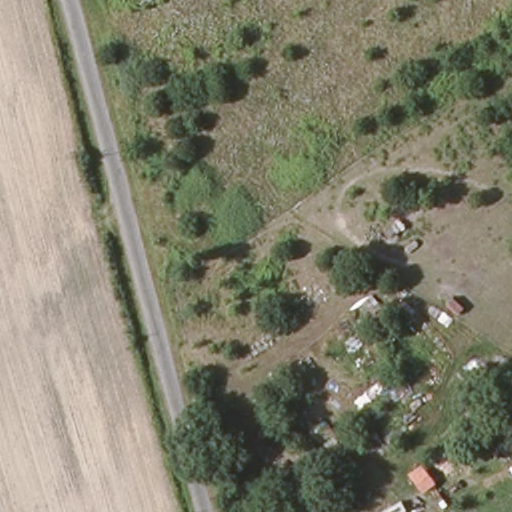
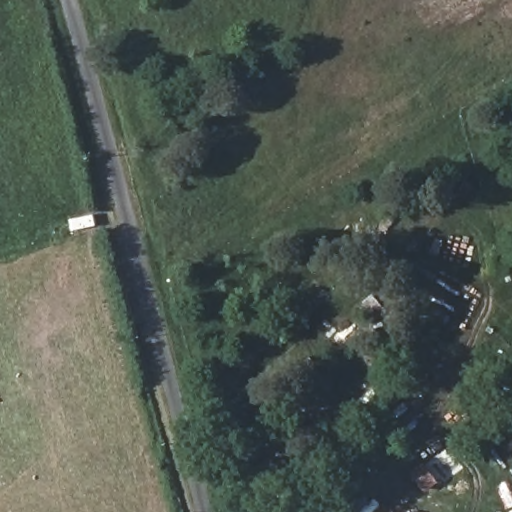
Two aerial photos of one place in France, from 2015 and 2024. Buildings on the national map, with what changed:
unchanged [(432,462),(441,476),(424,487),(414,476),(432,462)]

